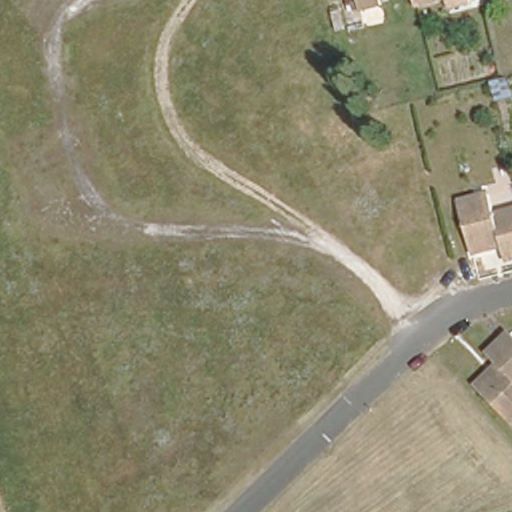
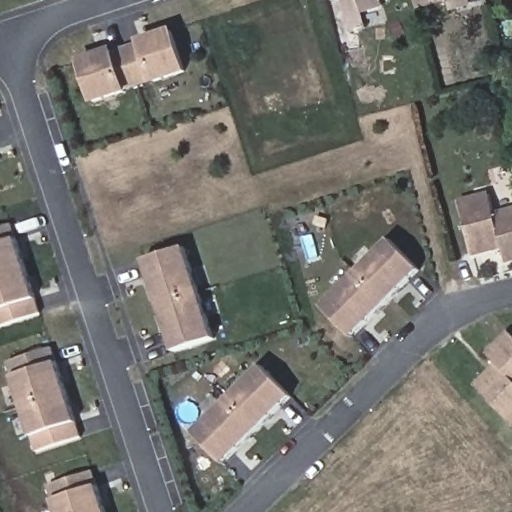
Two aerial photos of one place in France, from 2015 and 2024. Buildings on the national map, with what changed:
unchanged [(361,8),(359,0),(383,0),(383,2),(361,8)]
unchanged [(415,0),(432,0),(415,4),(415,0)]
unchanged [(448,0),(468,0),(450,6),(448,0)]
new [(92,104),(78,60),(112,49),(137,41),(174,29),(187,74),(153,84),(127,93),(92,104)]
unchanged [(503,245),(475,252),(461,202),(492,193),(498,214),(512,210),(512,259),(509,260),(503,245)]
new [(18,240),(37,300),(42,314),(0,327),(0,227),(11,223),(18,240)]
new [(350,338),(320,307),(390,239),(421,270),(350,338)]
new [(174,353),(144,260),(185,247),(216,339),(174,353)]
unchanged [(500,364),(490,354),(495,349),(512,332),(512,420),(479,386),(500,364)]
new [(58,363),(77,423),(81,438),(37,454),(33,438),(15,378),(8,363),(53,348),(58,363)]
new [(224,465),(193,433),(260,365),(292,396),(224,465)]
new [(99,486),(107,512),(57,512),(53,500),(48,486),(94,471),(99,486)]

